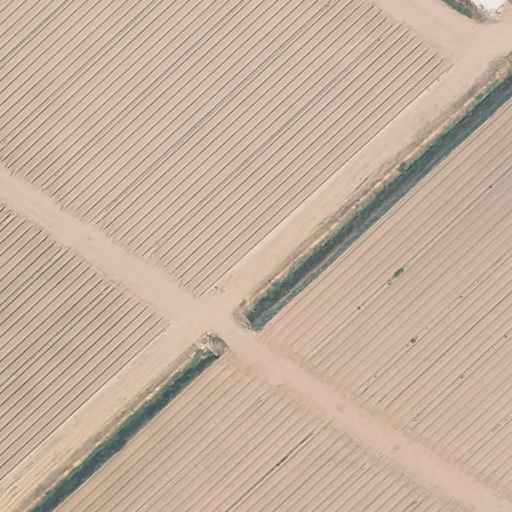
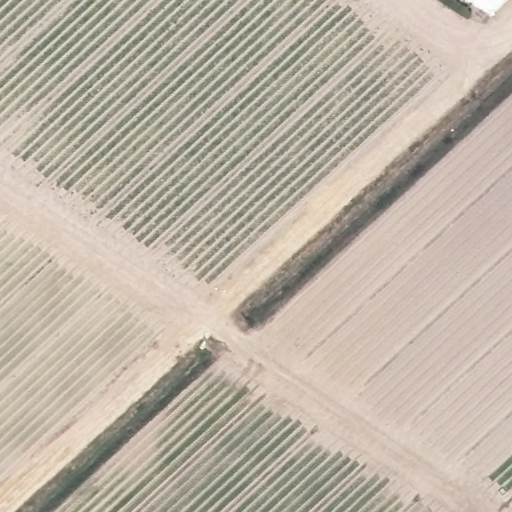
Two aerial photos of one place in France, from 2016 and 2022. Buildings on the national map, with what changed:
unchanged [(474,0),(510,0),(494,14),(474,0)]

